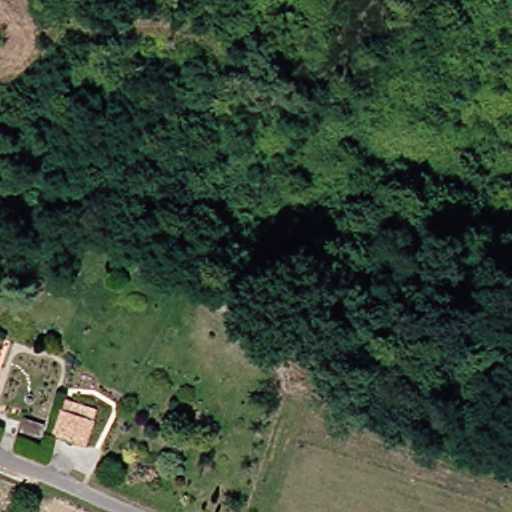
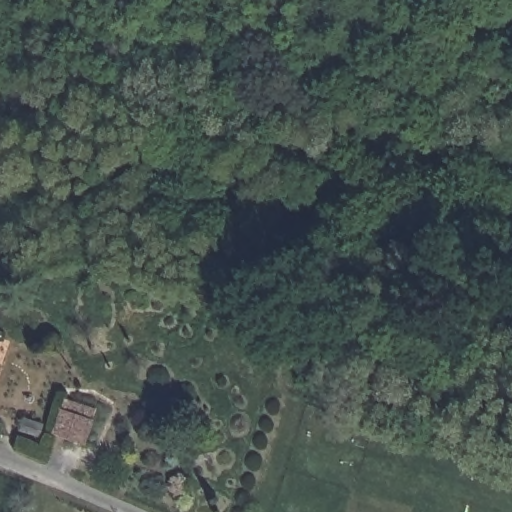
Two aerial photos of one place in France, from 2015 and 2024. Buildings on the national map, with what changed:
unchanged [(38,437),(11,428),(16,414),(38,422),(51,394),(90,409),(77,443),(40,430),(38,437)]

